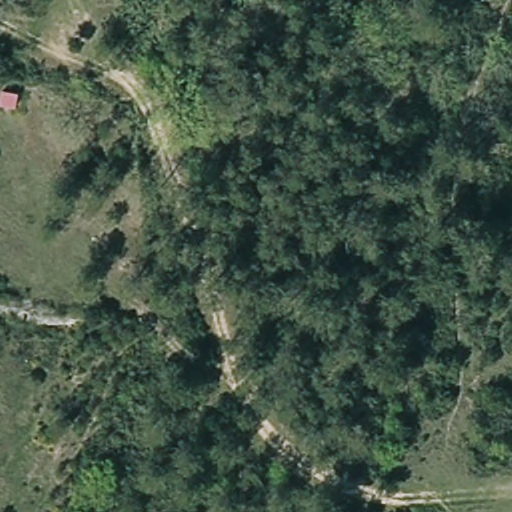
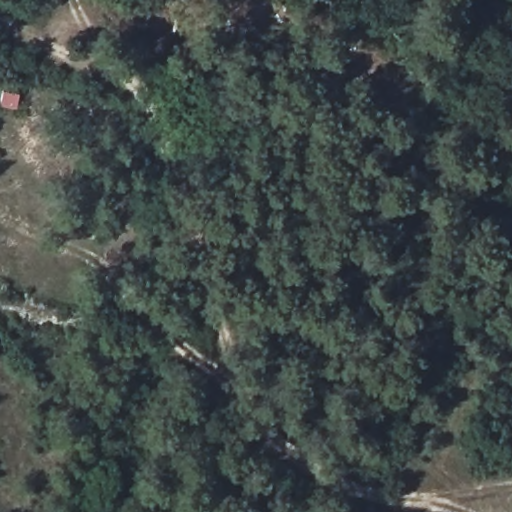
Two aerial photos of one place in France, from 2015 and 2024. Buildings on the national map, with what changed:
unchanged [(0,108),(0,97),(1,90),(22,93),(16,110),(0,108)]

